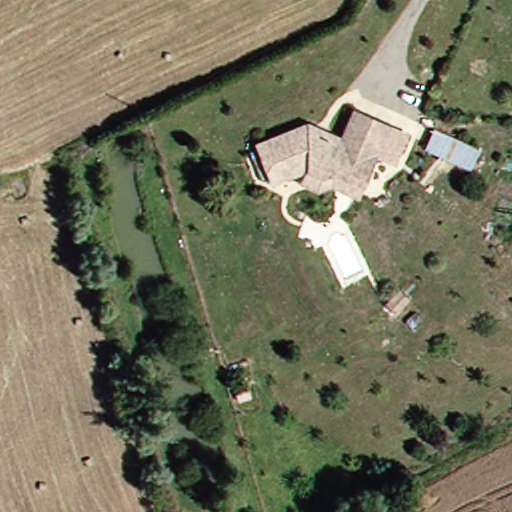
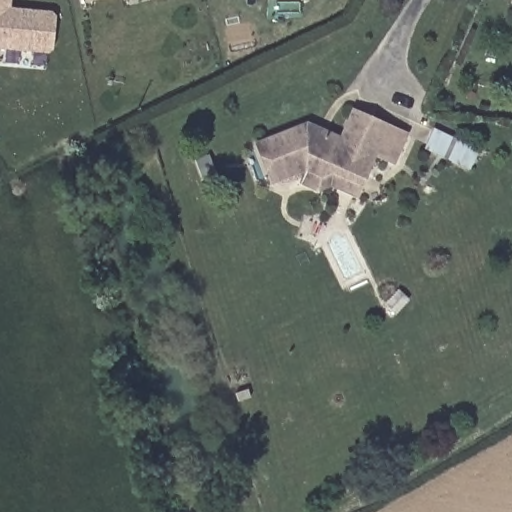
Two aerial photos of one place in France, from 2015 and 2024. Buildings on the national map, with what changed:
new [(8,7),(50,11),(55,16),(52,44),(47,49),(0,44),(0,0),(8,0),(8,7)]
unchanged [(322,184),(310,190),(293,182),(298,171),(266,180),(254,141),(305,125),(338,141),(352,114),(385,130),(362,179),(352,199),(322,184)]

